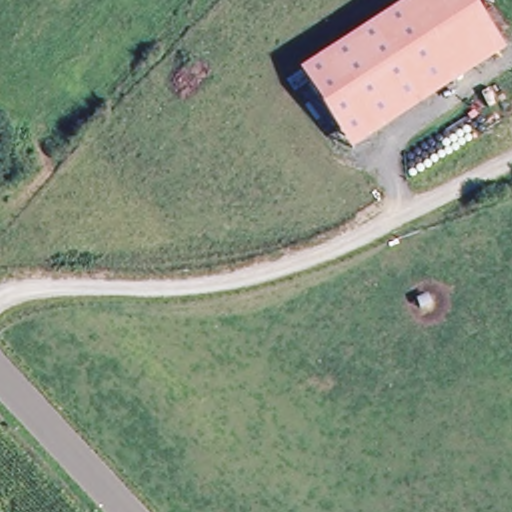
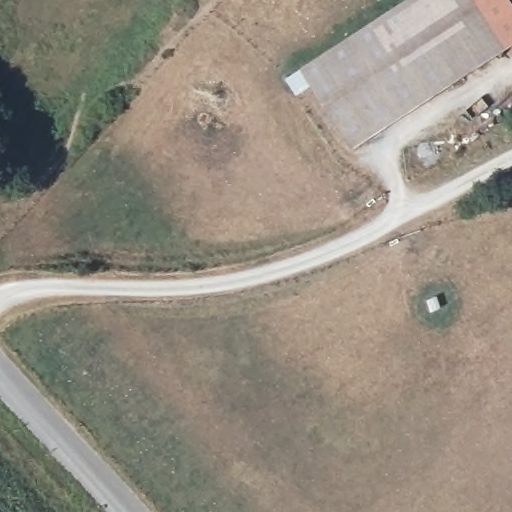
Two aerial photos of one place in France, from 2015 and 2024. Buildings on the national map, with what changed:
unchanged [(510,0),(512,3),(512,48),(353,150),(300,68),(408,0),(510,0)]

